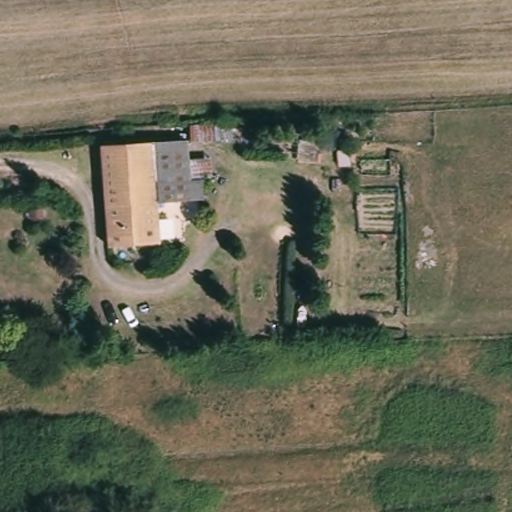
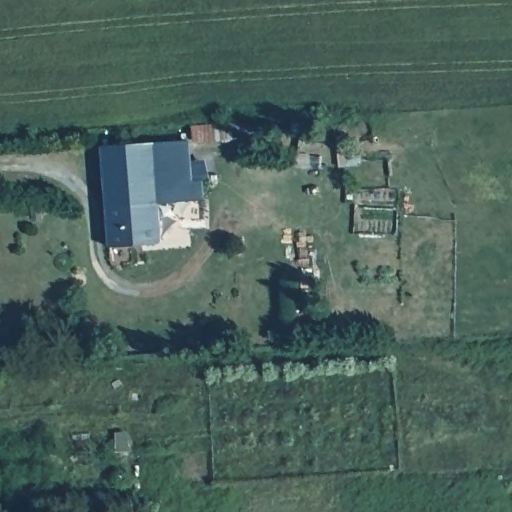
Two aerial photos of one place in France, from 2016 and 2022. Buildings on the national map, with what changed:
unchanged [(155,147),(193,145),(195,181),(208,182),(207,202),(157,206),(156,147),(155,147)]
unchanged [(105,147),(130,147),(132,207),(157,206),(158,220),(107,222),(105,147)]
unchanged [(132,207),(130,147),(156,147),(157,206),(132,207)]
unchanged [(158,220),(159,245),(108,246),(107,222),(158,220)]

